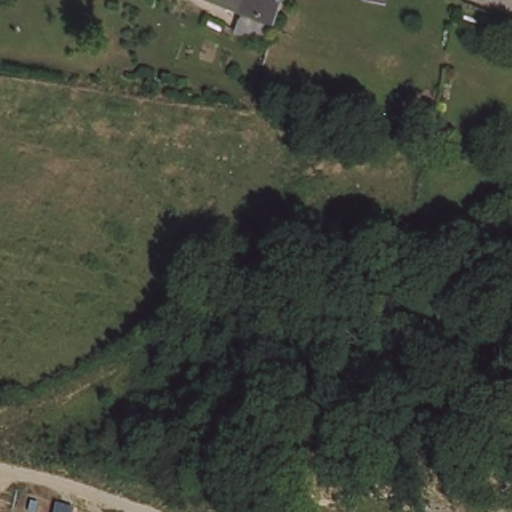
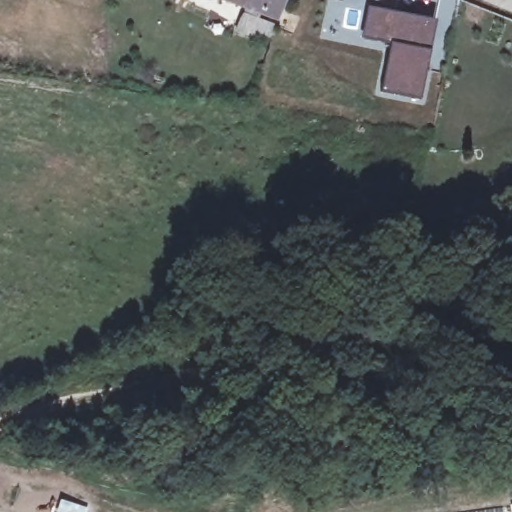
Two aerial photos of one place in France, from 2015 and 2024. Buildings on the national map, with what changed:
unchanged [(264,9),(243,0),(284,0),(278,15),(264,9)]
unchanged [(368,0),(385,0),(384,5),(368,0)]
new [(439,0),(458,0),(442,71),(429,68),(435,19),(439,0)]
new [(365,5),(435,19),(429,68),(422,100),(380,91),(389,43),(360,38),(365,5)]
unchanged [(246,10),(274,21),(266,40),(239,29),(246,10)]
new [(512,504),(512,512),(511,512),(510,504),(512,504)]
demolished [(410,511),(410,512),(402,512),(410,511)]

